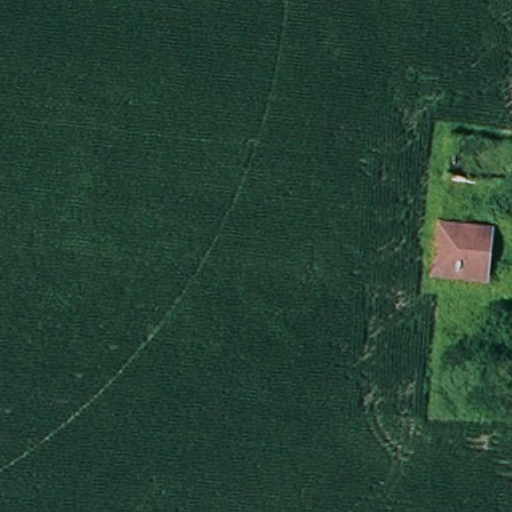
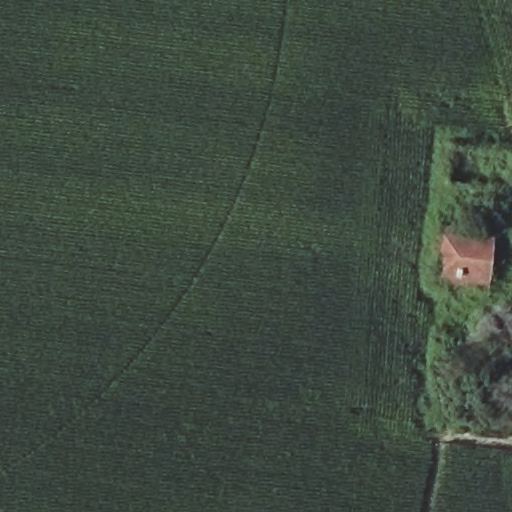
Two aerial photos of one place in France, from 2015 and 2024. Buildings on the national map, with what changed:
unchanged [(440,230),(488,235),(482,286),(433,281),(440,230)]

